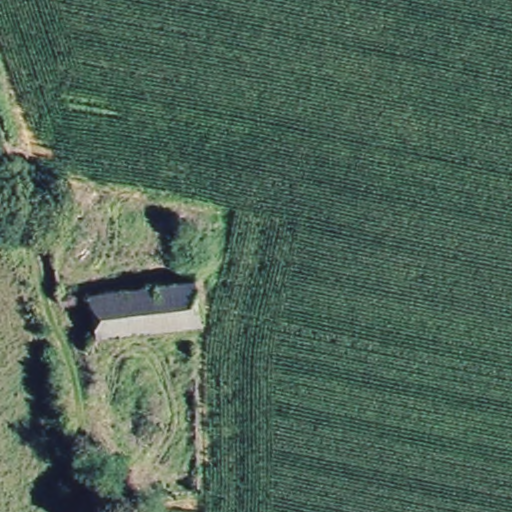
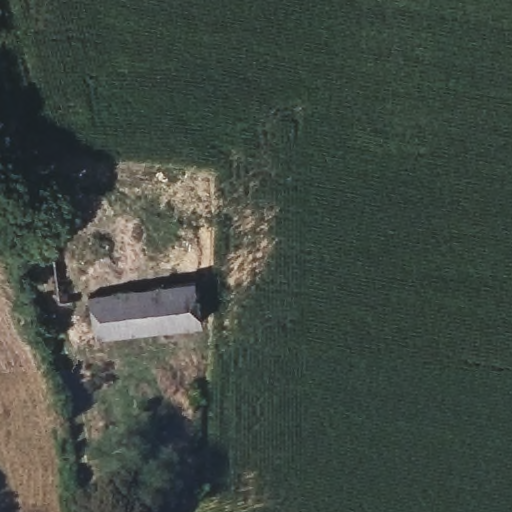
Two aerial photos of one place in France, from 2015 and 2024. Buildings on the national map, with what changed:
unchanged [(106,328),(101,284),(180,277),(208,274),(213,319),(203,319),(106,328)]

